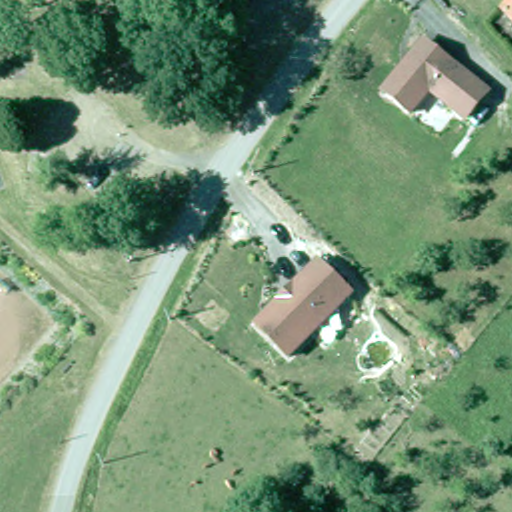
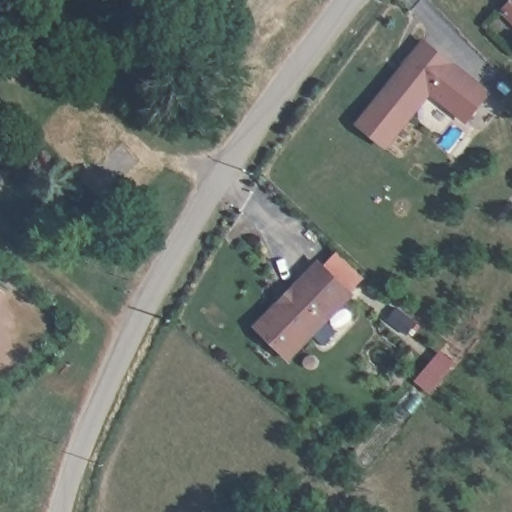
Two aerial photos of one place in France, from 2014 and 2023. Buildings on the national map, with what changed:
unchanged [(509,5),(512,8),(512,24),(500,12),(509,5)]
unchanged [(379,91),(425,36),(490,91),(464,121),(430,93),(412,117),(379,91)]
new [(387,150),(355,124),(379,91),(412,117),(387,150)]
unchanged [(222,108),(214,119),(205,111),(212,101),(222,108)]
unchanged [(250,323),(320,257),(355,292),(288,357),(250,323)]

